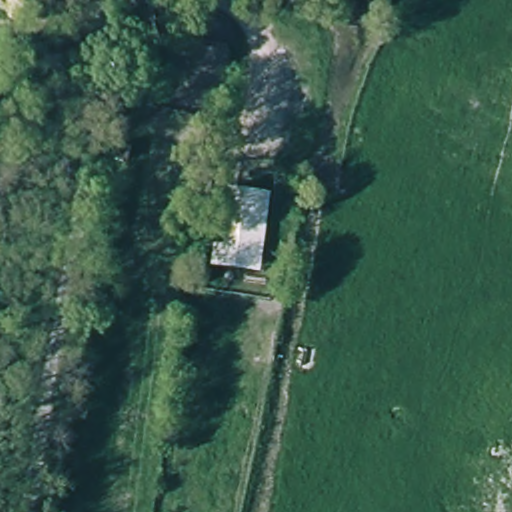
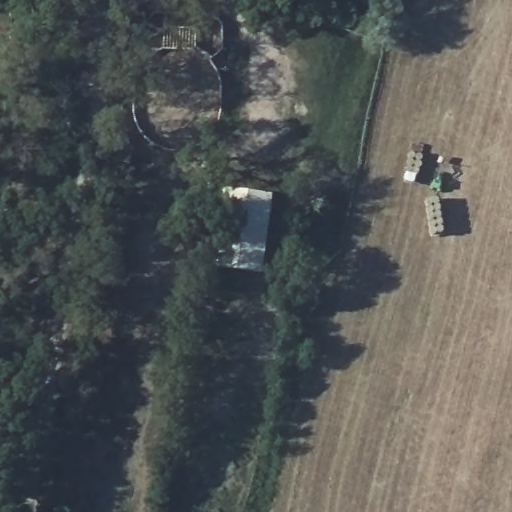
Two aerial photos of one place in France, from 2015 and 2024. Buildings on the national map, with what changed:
unchanged [(213,264),(224,187),(275,192),(263,270),(213,264)]

